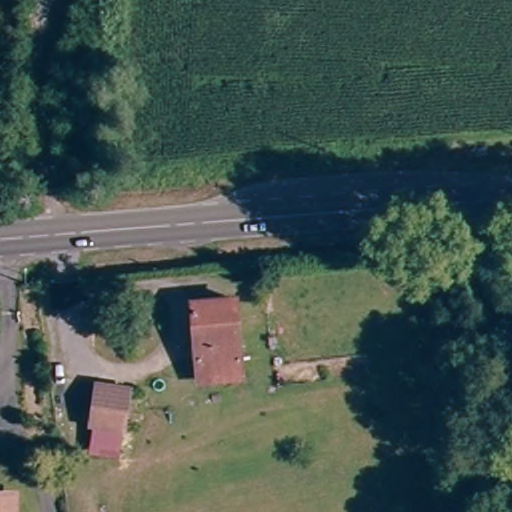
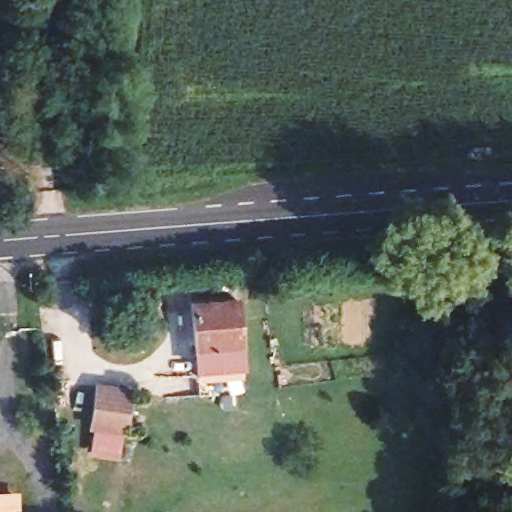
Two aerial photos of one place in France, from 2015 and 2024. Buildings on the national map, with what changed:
unchanged [(242,380),(192,379),(189,296),(241,296),(242,380)]
unchanged [(128,385),(126,447),(92,448),(92,385),(128,385)]
unchanged [(19,512),(0,512),(0,494),(18,493),(19,512)]

